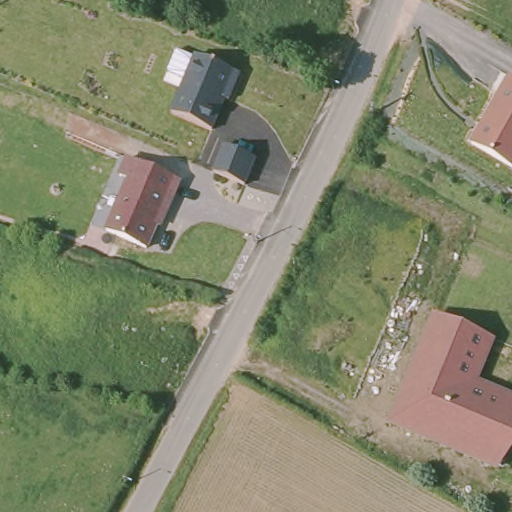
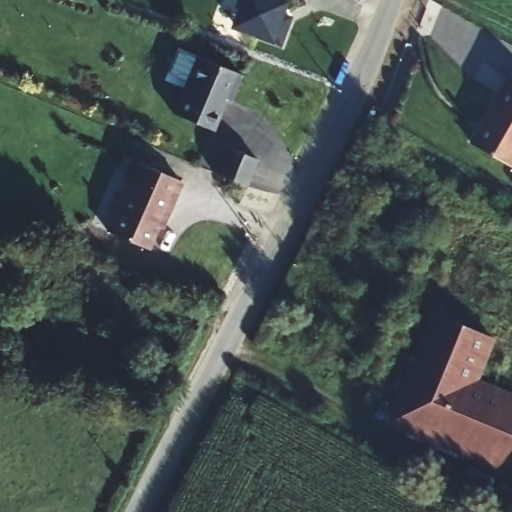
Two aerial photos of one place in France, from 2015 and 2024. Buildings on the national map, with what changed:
new [(292,3),(288,14),(294,18),(282,47),(275,44),(233,28),(239,9),(236,8),(240,0),(286,0),(285,0),(292,3)]
unchanged [(236,68),(225,99),(213,131),(171,112),(195,55),(236,68)]
unchanged [(508,78),(512,80),(512,168),(472,143),(508,78)]
unchanged [(257,159),(246,187),(212,171),(222,146),(257,159)]
unchanged [(128,180),(120,174),(128,155),(179,178),(148,251),(106,229),(128,180)]
unchanged [(493,330),(475,376),(512,391),(512,440),(504,461),(393,414),(437,309),(493,330)]

